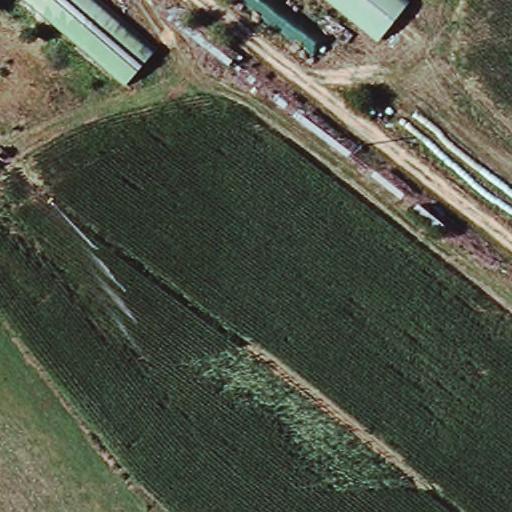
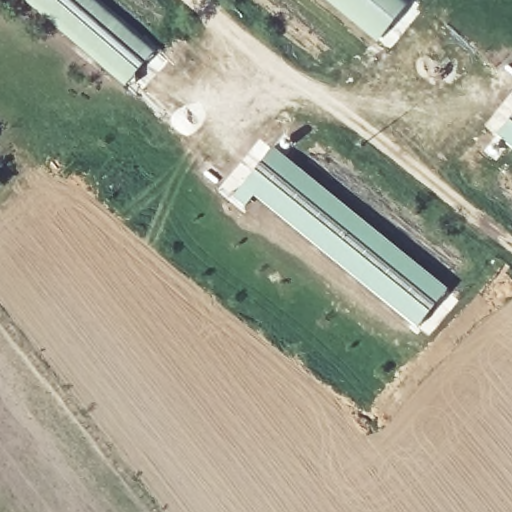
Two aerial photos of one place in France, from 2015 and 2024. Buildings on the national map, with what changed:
unchanged [(127,79),(24,0),(102,0),(156,41),(127,79)]
unchanged [(332,0),(394,0),(368,30),(332,0)]
new [(496,136),(512,116),(512,149),(496,136)]
new [(232,199),(272,150),(446,290),(416,328),(252,197),(242,208),(232,199)]

